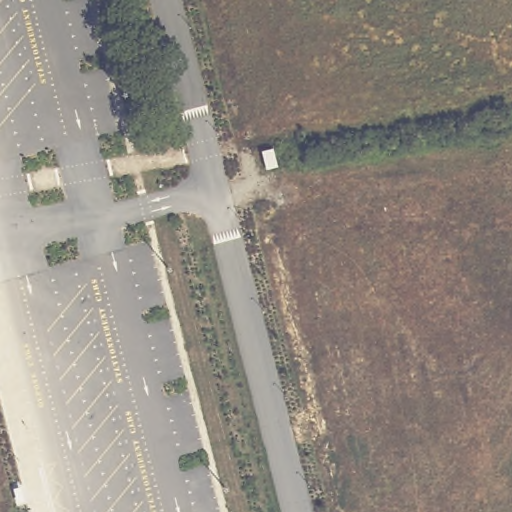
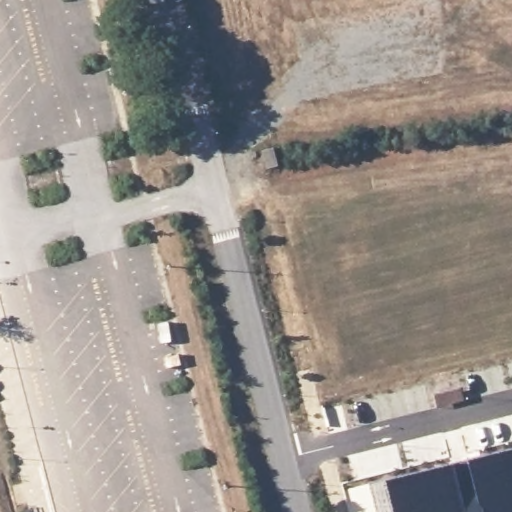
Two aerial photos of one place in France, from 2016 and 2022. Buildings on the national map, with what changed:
new [(383,479),(512,447),(512,512),(374,512),(367,484),(383,479)]

